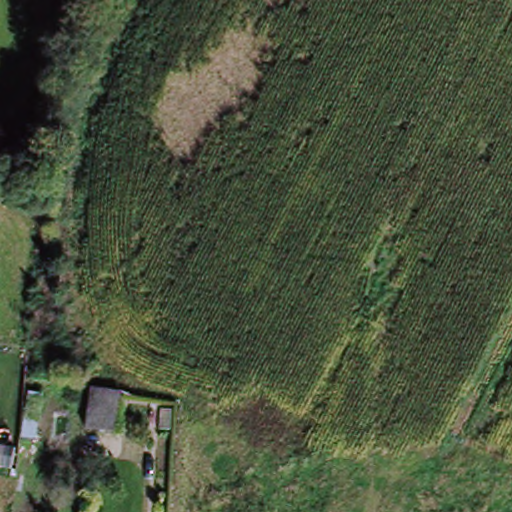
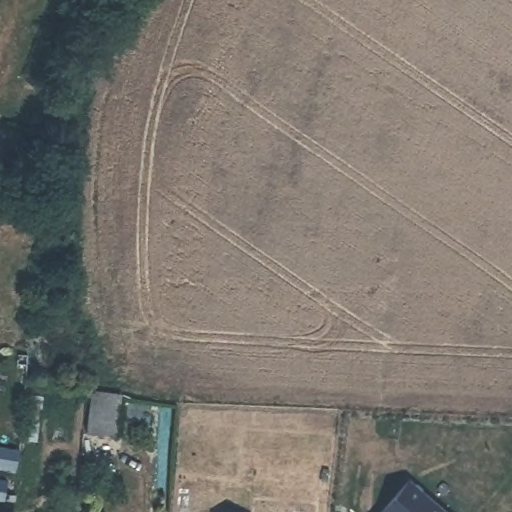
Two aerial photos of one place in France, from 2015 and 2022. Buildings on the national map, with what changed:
unchanged [(84,428),(90,388),(122,392),(117,433),(84,428)]
unchanged [(37,440),(21,438),(27,391),(44,393),(37,440)]
new [(410,483),(443,512),(382,512),(410,483)]
demolished [(112,498),(92,496),(93,485),(114,487),(112,498)]

